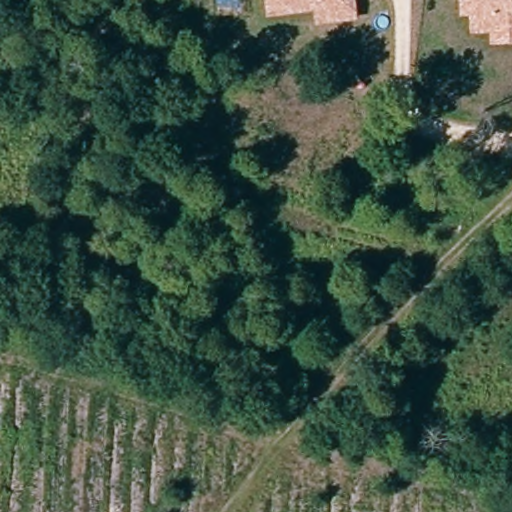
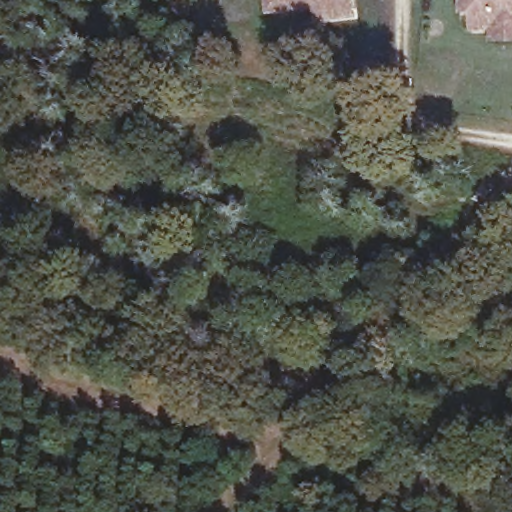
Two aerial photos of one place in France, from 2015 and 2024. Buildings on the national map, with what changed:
unchanged [(265,0),(356,0),(358,20),(313,25),(312,11),(267,17),(265,0)]
unchanged [(459,0),(512,0),(512,43),(489,45),(489,32),(471,33),(471,15),(459,16),(459,0)]

